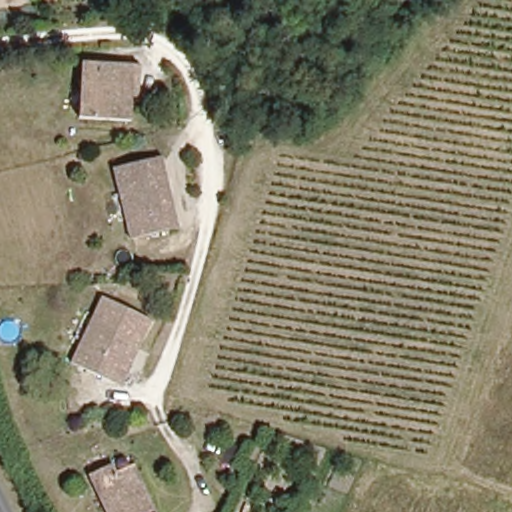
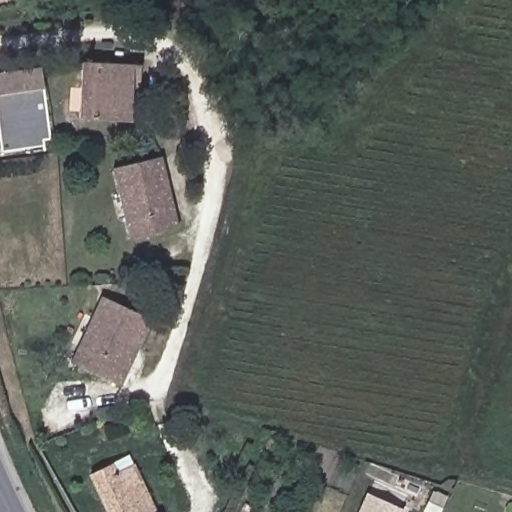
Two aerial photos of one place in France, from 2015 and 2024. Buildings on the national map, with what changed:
unchanged [(126,97),(123,123),(73,117),(76,96),(80,68),(81,60),(139,67),(138,88),(137,98),(126,97)]
new [(52,139),(44,140),(44,146),(3,152),(0,132),(0,73),(42,66),(44,88),(52,139)]
unchanged [(180,230),(129,240),(125,223),(133,220),(128,192),(119,194),(113,169),(164,158),(172,189),(164,191),(169,213),(177,211),(180,230)]
unchanged [(85,347),(99,321),(91,317),(102,294),(153,319),(138,350),(133,347),(123,367),(129,370),(122,384),(69,359),(78,343),(85,347)]
unchanged [(138,469),(156,512),(111,512),(94,472),(113,463),(120,478),(138,469)]
new [(404,510),(403,512),(361,512),(369,494),(404,510)]

